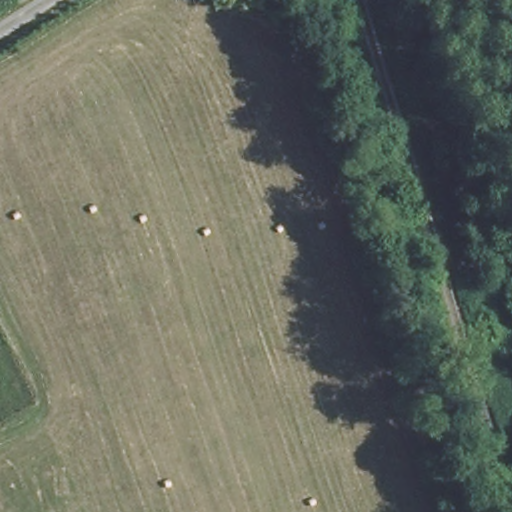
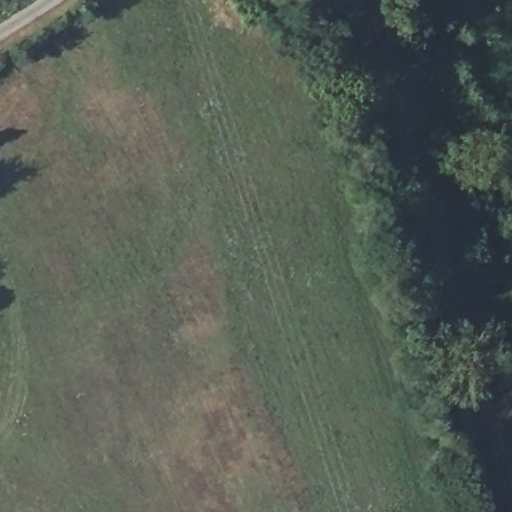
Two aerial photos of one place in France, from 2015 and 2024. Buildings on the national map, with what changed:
[]

